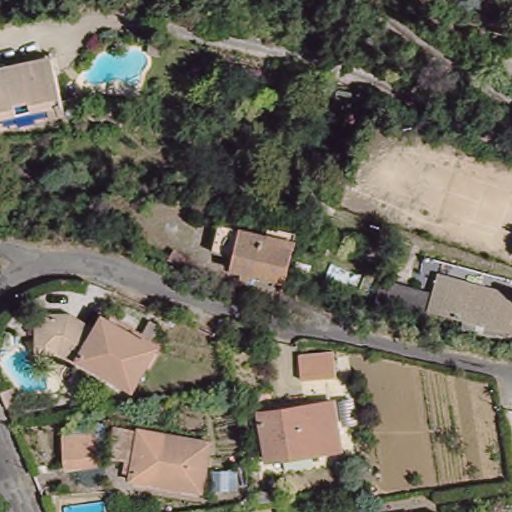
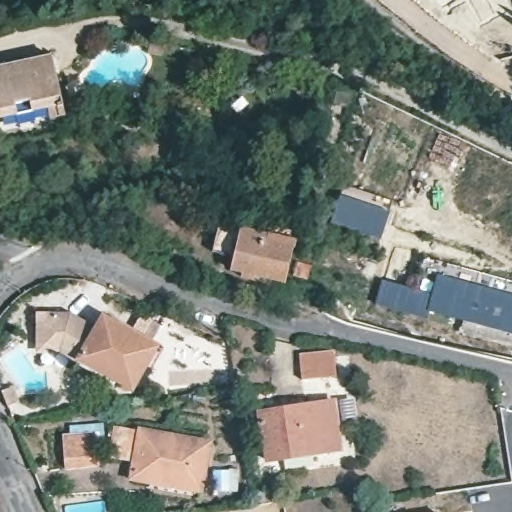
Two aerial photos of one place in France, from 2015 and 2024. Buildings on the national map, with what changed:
unchanged [(10,64),(55,54),(57,64),(64,100),(0,115),(0,66),(10,64)]
new [(345,185),(392,201),(389,214),(380,240),(331,224),(340,195),(345,185)]
unchanged [(290,282),(289,287),(236,273),(242,246),(221,242),(224,229),(298,247),(290,282)]
unchanged [(176,253),(197,266),(193,274),(171,260),(176,253)]
unchanged [(438,292),(442,273),(512,292),(512,327),(497,323),(495,331),(470,324),(472,315),(434,306),(438,292)]
unchanged [(434,306),(432,314),(382,300),(387,278),(438,292),(434,306)]
unchanged [(39,314),(71,314),(96,328),(103,315),(106,318),(83,357),(62,344),(39,344),(39,314)]
unchanged [(157,348),(134,384),(97,364),(95,368),(81,359),(83,357),(106,318),(157,348)]
unchanged [(160,329),(154,339),(145,335),(152,324),(160,329)]
unchanged [(512,327),(512,334),(511,334),(512,327)]
unchanged [(336,376),(303,379),(300,356),(334,352),(336,376)]
unchanged [(17,397),(15,403),(8,404),(4,389),(14,387),(17,397)]
unchanged [(260,456),(254,412),(331,402),(337,445),(260,456)]
unchanged [(205,482),(157,474),(156,479),(138,476),(141,452),(119,449),(121,427),(212,440),(205,482)]
unchanged [(93,468),(62,473),(56,441),(87,435),(93,468)]

